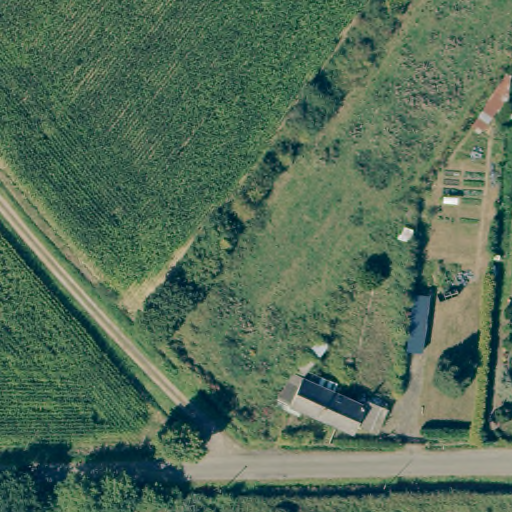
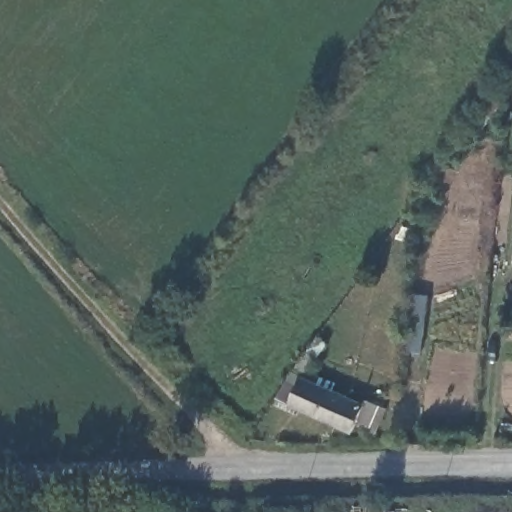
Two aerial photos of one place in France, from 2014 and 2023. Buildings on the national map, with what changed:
unchanged [(418,352),(406,351),(412,294),(425,297),(418,352)]
unchanged [(342,427),(284,399),(312,359),(320,363),(310,380),(353,399),(342,427)]
unchanged [(371,408),(374,401),(392,409),(381,435),(364,427),(359,435),(342,427),(353,399),(371,408)]

